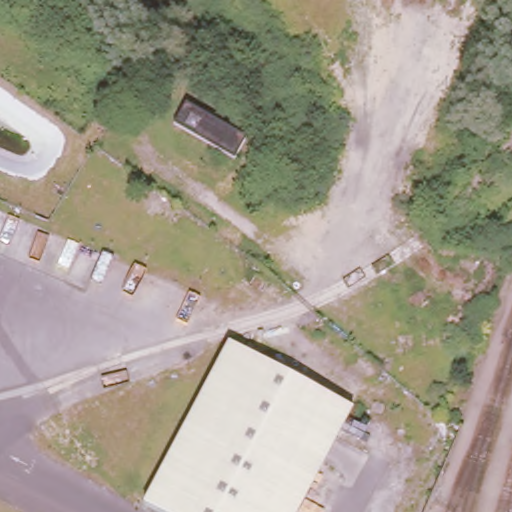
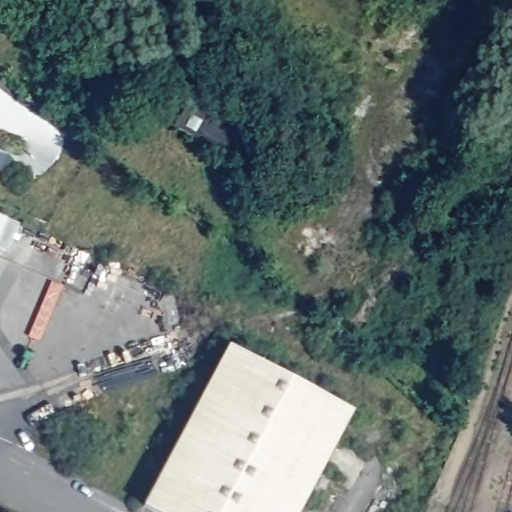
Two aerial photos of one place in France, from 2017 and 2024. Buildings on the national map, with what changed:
unchanged [(247,137),(235,157),(175,123),(187,102),(247,137)]
unchanged [(294,512),(152,512),(140,506),(225,346),(348,411),(294,512)]

